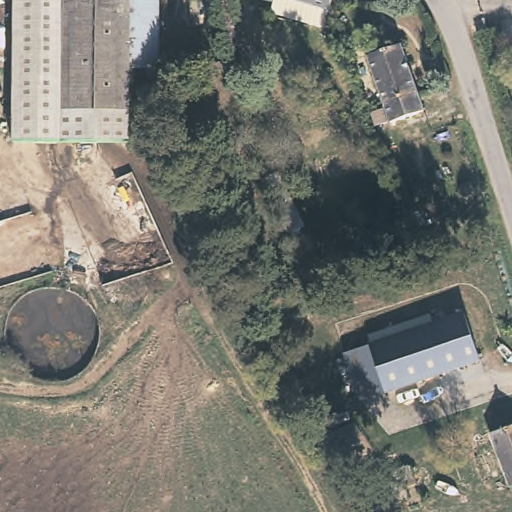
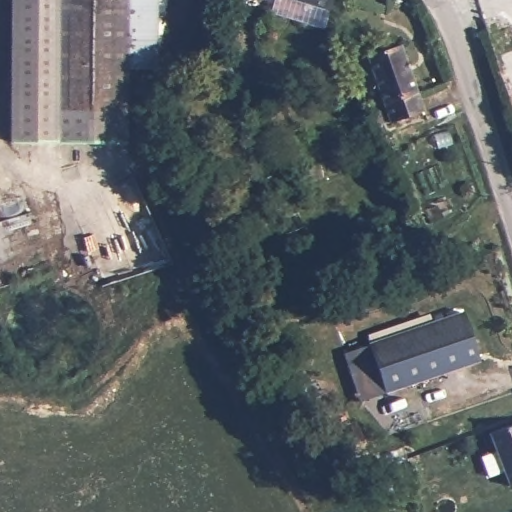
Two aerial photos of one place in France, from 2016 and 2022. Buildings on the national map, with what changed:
unchanged [(151,24),(146,69),(140,69),(117,66),(109,140),(0,127),(0,94),(4,61),(11,0),(125,0),(121,23),(151,24)]
unchanged [(154,0),(151,24),(121,23),(125,0),(154,0)]
unchanged [(273,6),(274,0),(331,0),(327,19),(273,6)]
unchanged [(421,101),(388,114),(366,51),(398,41),(421,101)]
unchanged [(382,112),(372,117),(367,104),(379,100),(382,112)]
unchanged [(473,189),(457,195),(455,185),(470,179),(473,189)]
unchanged [(472,323),(480,373),(380,387),(373,337),(472,323)]
unchanged [(490,441),(512,430),(512,484),(490,441)]
unchanged [(415,482),(367,499),(360,483),(408,466),(415,482)]

